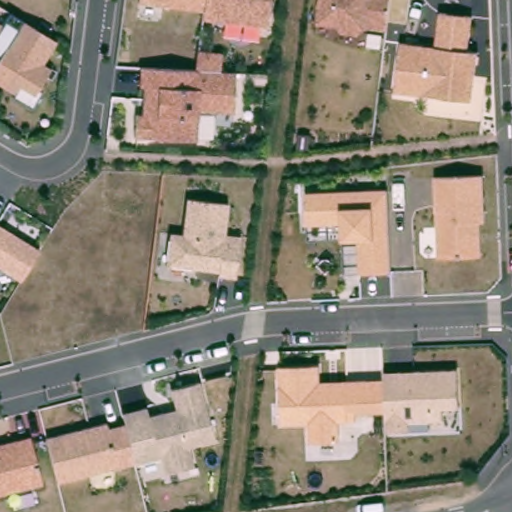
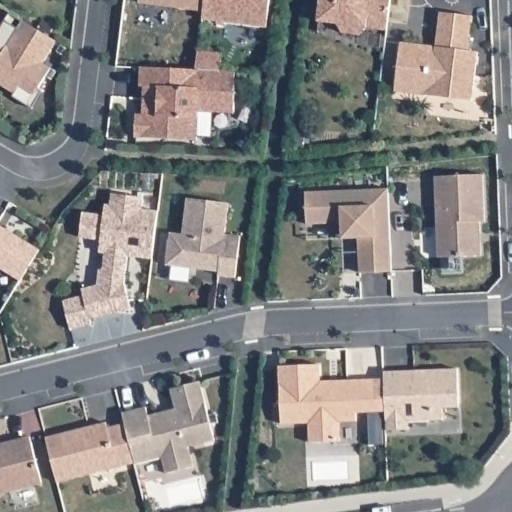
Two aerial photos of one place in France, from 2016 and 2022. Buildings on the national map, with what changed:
unchanged [(143,0),(205,0),(203,11),(143,0)]
unchanged [(202,20),(203,11),(205,0),(270,0),(266,28),(202,20)]
unchanged [(322,20),(325,0),(393,0),(389,26),(322,20)]
unchanged [(475,14),(470,50),(481,51),(475,100),(398,88),(403,41),(438,45),(442,11),(475,14)]
unchanged [(42,65),(52,71),(32,102),(0,81),(0,63),(24,20),(59,40),(42,65)]
unchanged [(0,26),(0,21),(2,22),(0,26)]
unchanged [(142,112),(143,87),(139,87),(141,65),(195,69),(197,49),(222,50),(221,70),(236,70),(232,114),(199,112),(198,141),(135,136),(136,112),(142,112)]
unchanged [(485,174),(486,221),(480,221),(480,255),(437,255),(435,175),(485,174)]
unchanged [(388,188),(391,270),(359,270),(358,236),(343,237),(342,223),(307,223),(306,190),(388,188)]
new [(92,324),(70,329),(64,300),(85,295),(83,288),(98,285),(99,269),(103,270),(105,251),(100,252),(101,239),(81,235),(83,212),(105,213),(106,204),(111,204),(112,194),(143,197),(142,209),(157,210),(152,258),(128,255),(125,283),(130,308),(90,317),(92,324)]
unchanged [(231,200),(228,231),(243,234),(238,275),(169,265),(173,231),(186,232),(189,196),(231,200)]
unchanged [(26,282),(0,265),(0,222),(44,246),(26,282)]
unchanged [(323,363),(323,378),(389,377),(390,410),(360,412),(360,420),(343,421),(343,441),(312,441),(311,421),(284,422),(282,365),(323,363)]
unchanged [(385,370),(458,369),(460,405),(443,405),(443,416),(416,417),(415,426),(386,427),(386,411),(390,410),(389,377),(385,377),(385,370)]
unchanged [(122,410),(148,405),(150,413),(174,406),(170,387),(201,380),(214,440),(190,445),(195,466),(166,473),(162,457),(134,463),(128,424),(125,424),(122,410)]
unchanged [(111,420),(112,425),(128,424),(134,463),(59,480),(49,434),(111,420)]
unchanged [(44,481),(0,494),(0,443),(32,434),(44,481)]

